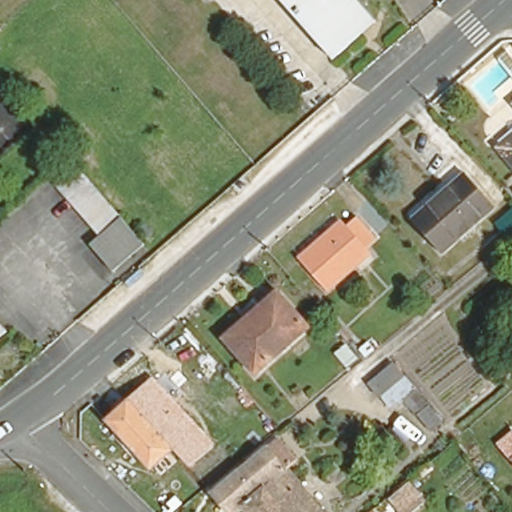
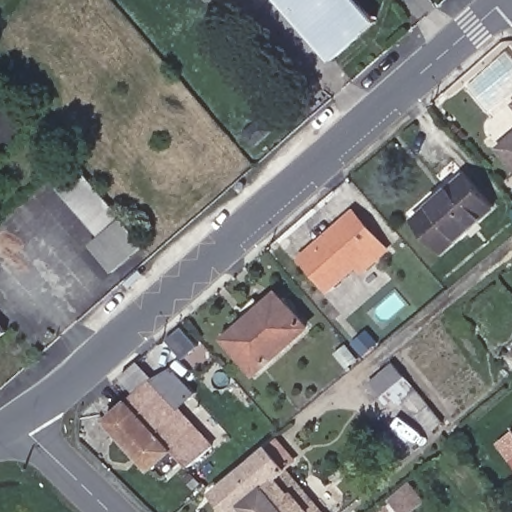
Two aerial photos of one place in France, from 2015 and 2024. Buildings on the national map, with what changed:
unchanged [(280,0),(356,0),(375,22),(332,60),(280,0)]
unchanged [(508,105),(512,101),(512,109),(508,105)]
unchanged [(491,147),(512,129),(512,172),(491,147)]
unchanged [(134,232),(144,224),(152,234),(141,243),(142,244),(113,271),(90,245),(98,237),(49,178),(71,159),(134,232)]
unchanged [(440,252),(413,221),(464,174),(492,207),(440,252)]
unchanged [(508,191),(512,187),(512,196),(508,191)]
unchanged [(506,213),(512,206),(512,220),(506,213)]
unchanged [(288,263),(329,227),(334,232),(345,222),(366,246),(354,255),(358,261),(317,296),(288,263)]
unchanged [(255,373),(224,337),(276,292),(307,327),(255,373)]
unchanged [(0,335),(0,327),(4,332),(0,335)]
unchanged [(431,430),(416,413),(419,410),(402,390),(397,395),(391,387),(379,397),(368,385),(392,363),(441,421),(431,430)]
unchanged [(146,472),(101,425),(144,386),(188,433),(146,472)]
unchanged [(236,512),(228,512),(212,493),(276,437),(296,461),(285,470),(241,508),(236,512)]
unchanged [(285,470),(322,512),(244,512),(241,508),(285,470)]
unchanged [(412,512),(400,512),(389,497),(409,481),(426,501),(412,512)]

